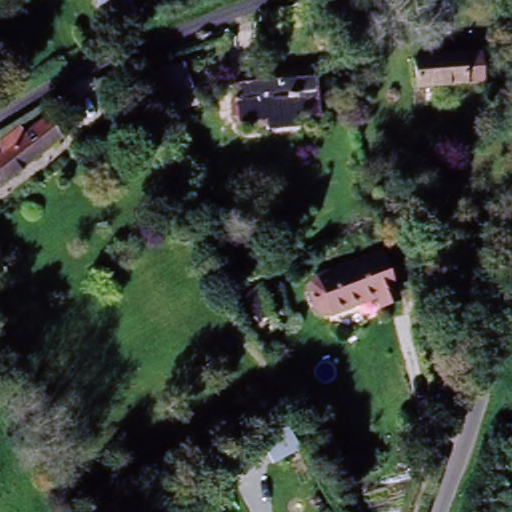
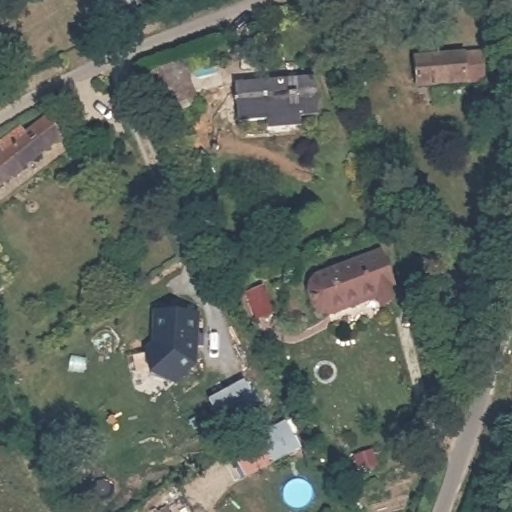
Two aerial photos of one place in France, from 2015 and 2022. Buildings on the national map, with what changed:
unchanged [(116,6),(104,12),(97,0),(127,0),(135,12),(125,18),(116,6)]
unchanged [(481,58),(486,84),(421,96),(416,69),(481,58)]
unchanged [(186,79),(223,65),(233,91),(196,105),(186,79)]
unchanged [(267,118),(263,83),(327,74),(332,111),(315,112),(317,128),(283,132),(281,117),(267,118)]
unchanged [(53,128),(66,148),(0,188),(0,159),(6,155),(1,146),(23,132),(30,142),(53,128)]
unchanged [(333,315),(323,308),(317,295),(318,285),(328,278),(385,253),(404,293),(387,301),(384,296),(333,315)]
unchanged [(0,287),(0,276),(5,283),(0,287)]
unchanged [(267,288),(279,315),(266,321),(253,295),(267,288)]
new [(176,386),(151,377),(146,352),(155,344),(156,312),(200,315),(198,366),(176,386)]
unchanged [(239,470),(220,484),(210,470),(229,456),(239,470)]
unchanged [(160,512),(156,512),(159,510),(160,512)]

